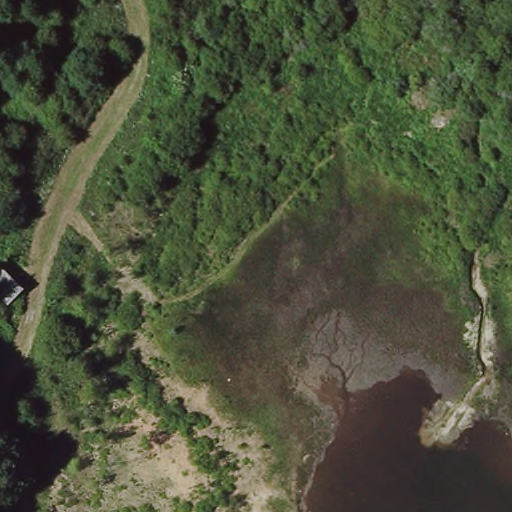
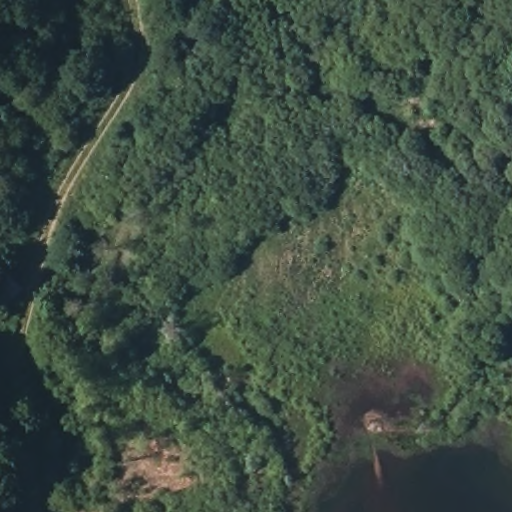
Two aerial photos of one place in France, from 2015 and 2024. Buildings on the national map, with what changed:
unchanged [(6,319),(0,314),(0,261),(27,292),(6,319)]

